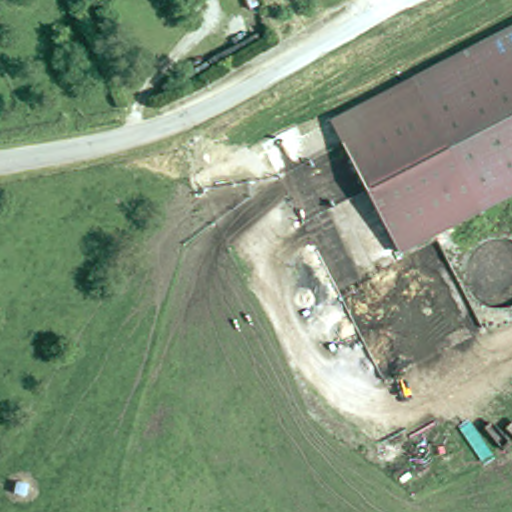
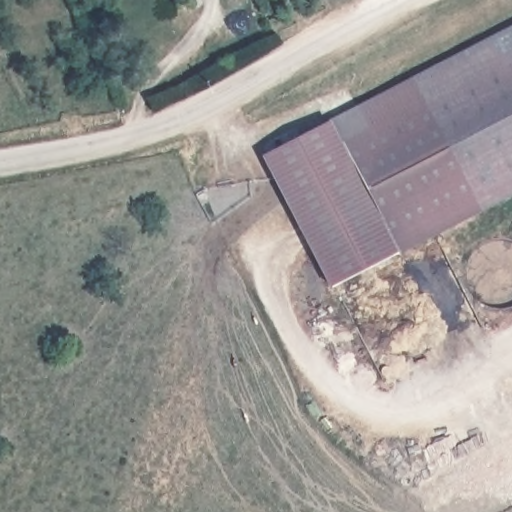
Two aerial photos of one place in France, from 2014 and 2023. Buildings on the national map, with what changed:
unchanged [(347,149),(371,135),(359,112),(512,31),(512,200),(404,258),(347,149)]
new [(330,287),(262,157),(357,106),(359,112),(371,135),(347,149),(400,251),(330,287)]

